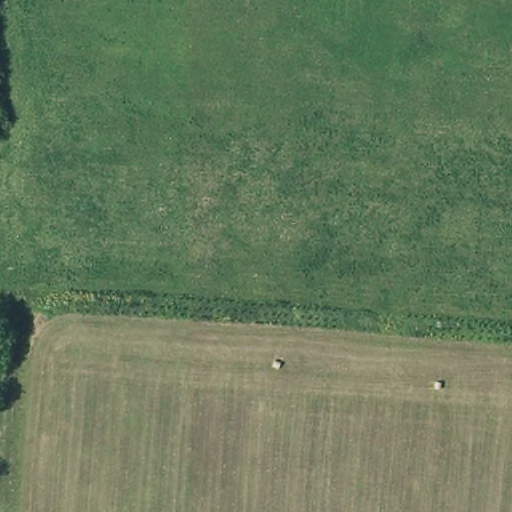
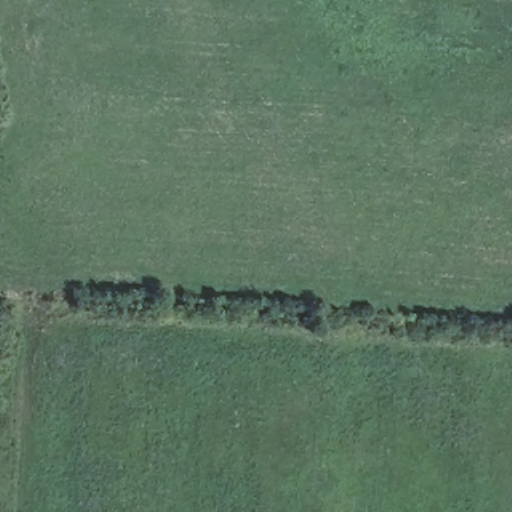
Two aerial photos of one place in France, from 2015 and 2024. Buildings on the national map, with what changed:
[]

